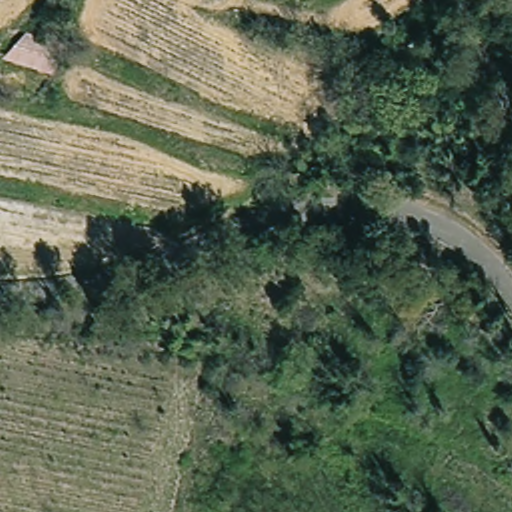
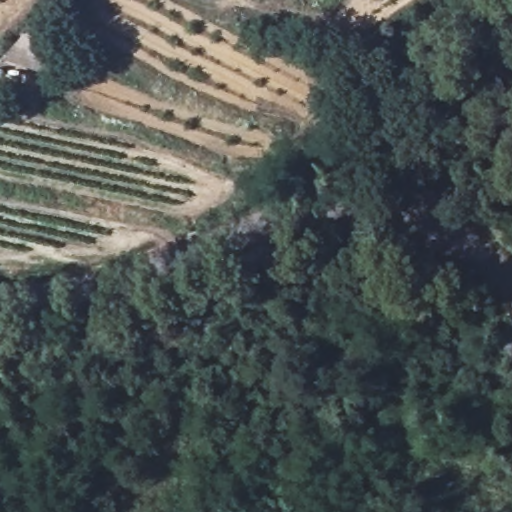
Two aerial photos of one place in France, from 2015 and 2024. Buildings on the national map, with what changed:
unchanged [(55,74),(4,57),(27,30),(64,44),(55,74)]

